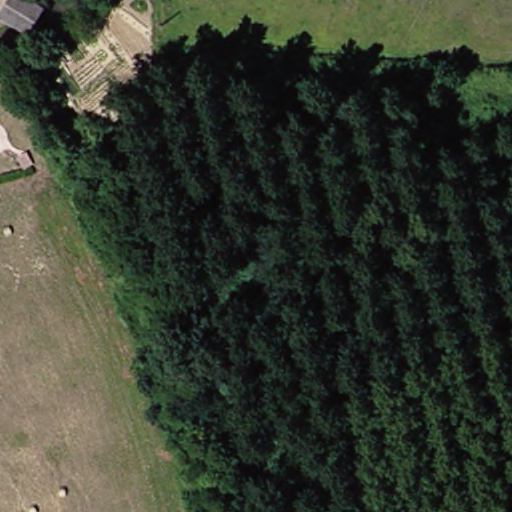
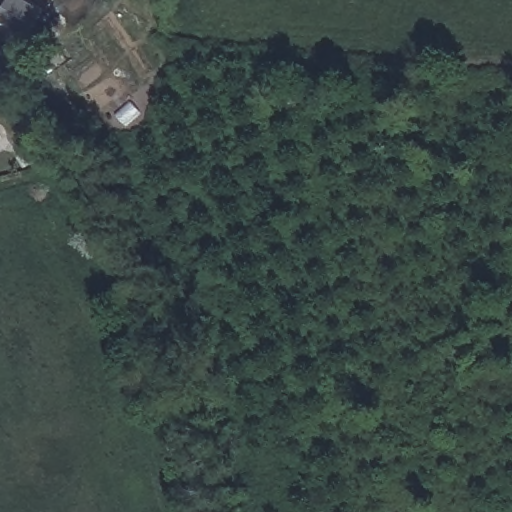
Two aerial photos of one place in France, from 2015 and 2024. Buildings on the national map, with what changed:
unchanged [(0,21),(0,0),(34,0),(45,9),(40,35),(0,22),(0,21)]
unchanged [(4,52),(0,55),(0,46),(4,52)]

